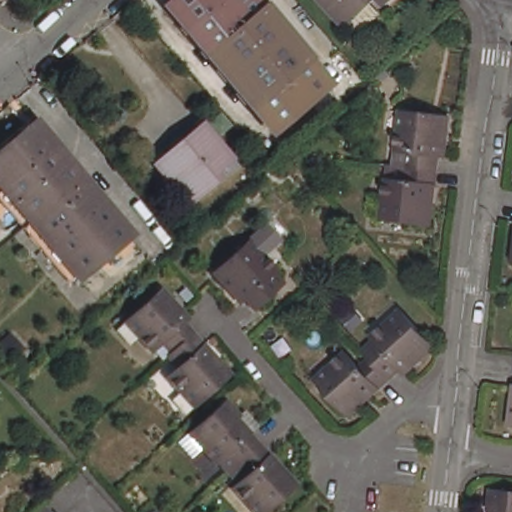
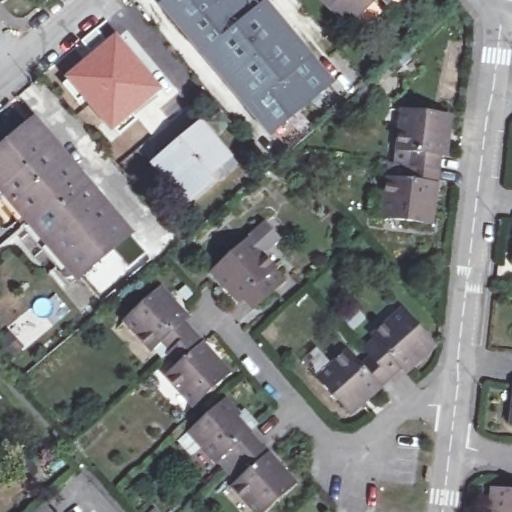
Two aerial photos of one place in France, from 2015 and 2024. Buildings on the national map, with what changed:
unchanged [(169,0),(260,0),(330,84),(274,131),(165,4),(169,0)]
unchanged [(344,25),(321,0),(371,0),(344,25)]
unchanged [(384,5),(380,0),(389,0),(384,5)]
new [(116,31),(165,89),(111,134),(63,77),(116,31)]
unchanged [(392,166),(396,167),(398,150),(400,129),(402,111),(408,112),(452,117),(450,135),(447,155),(440,154),(438,172),(437,186),(434,204),(432,224),(390,219),(385,219),(387,198),(390,180),(392,166)]
unchanged [(37,124),(131,237),(79,280),(0,184),(0,153),(37,124)]
unchanged [(203,125),(232,160),(215,173),(221,180),(195,202),(177,181),(172,186),(155,165),(203,125)]
unchanged [(508,236),(510,216),(512,216),(512,257),(505,256),(508,236)]
unchanged [(227,286),(215,272),(245,245),(250,240),(263,256),(276,270),(272,273),(280,281),(272,289),(275,292),(255,308),(245,296),(240,301),(227,286)]
unchanged [(182,391),(170,378),(180,367),(172,356),(175,352),(165,340),(154,350),(140,335),(127,320),(131,316),(162,290),(175,305),(188,319),(183,323),(204,346),(217,360),(230,376),(199,403),(195,407),(182,391)]
unchanged [(345,409),(317,378),(314,373),(330,360),(343,349),(357,364),(368,354),(361,346),(374,335),(371,330),(385,317),(399,305),(402,310),(430,341),(417,353),(402,366),(398,362),(374,384),(360,396),(345,409)]
unchanged [(503,405),(506,385),(512,385),(512,427),(501,425),(503,405)]
unchanged [(195,428),(226,401),(239,415),(233,420),(247,434),(248,432),(260,445),(230,471),(218,460),(217,461),(203,446),(190,432),(195,428)]
unchanged [(235,487),(240,482),(230,471),(260,445),(269,456),(282,471),(295,485),(266,512),(256,512),(247,501),(235,487)]
unchanged [(512,497),(512,512),(488,512),(490,495),(512,497)]
unchanged [(57,512),(31,512),(45,498),(57,512)]

